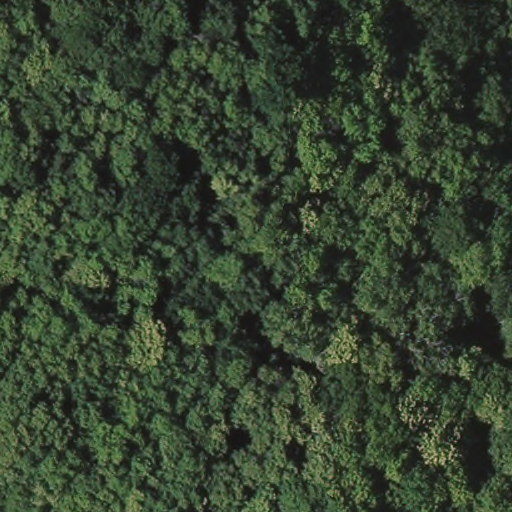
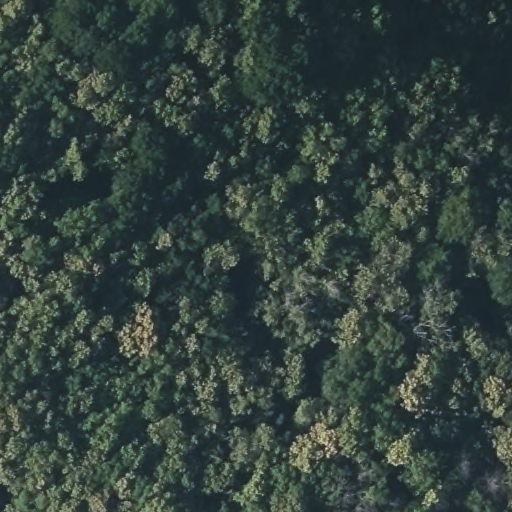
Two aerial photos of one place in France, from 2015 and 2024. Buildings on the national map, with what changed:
unchanged [(252,453),(237,477),(224,470),(237,443),(252,453)]
unchanged [(195,512),(185,512),(172,501),(196,480),(212,496),(195,512)]

